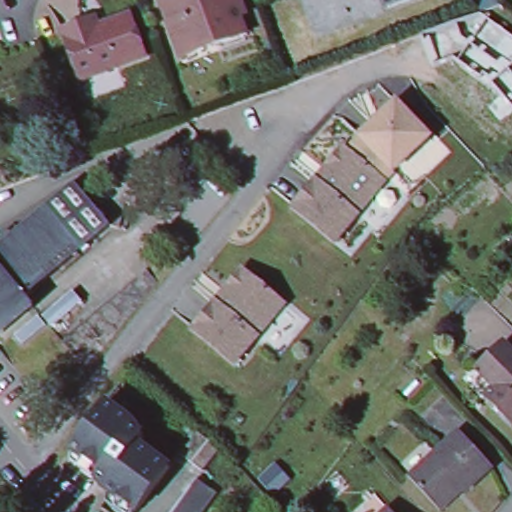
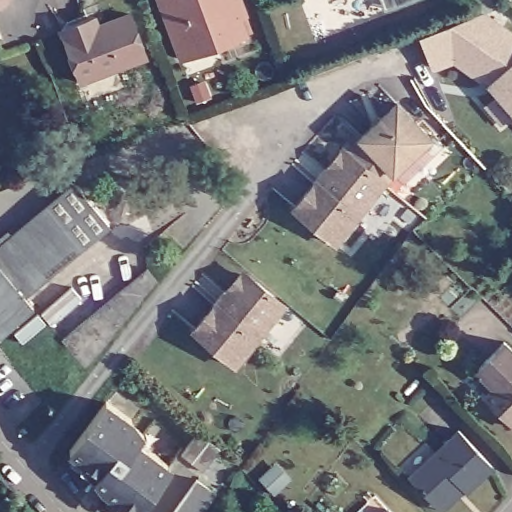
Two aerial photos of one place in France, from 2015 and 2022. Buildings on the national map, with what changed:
unchanged [(158,0),(238,0),(243,14),(238,16),(244,33),(224,41),(179,57),(176,50),(158,0)]
unchanged [(407,0),(389,7),(384,9),(381,0),(407,0)]
unchanged [(479,11),(474,0),(496,0),(498,4),(479,11)]
new [(419,35),(451,25),(487,12),(512,30),(512,116),(500,125),(484,106),(496,96),(454,61),(432,70),(419,35)]
unchanged [(92,16),(94,24),(126,13),(142,55),(77,79),(58,29),(79,21),(92,16)]
unchanged [(349,150),(359,138),(396,100),(434,139),(392,176),(384,180),(349,150)]
unchanged [(338,150),(349,150),(384,180),(334,242),(292,208),(314,180),(331,159),(338,150)]
unchanged [(68,181),(102,222),(74,246),(39,205),(68,181)]
unchanged [(16,295),(0,275),(0,238),(39,205),(74,246),(16,295)]
unchanged [(153,281),(82,369),(57,340),(141,268),(153,281)]
unchanged [(238,274),(248,273),(285,304),(235,365),(191,331),(214,303),(232,281),(238,274)]
unchanged [(21,301),(0,318),(0,275),(16,295),(21,301)]
unchanged [(511,428),(482,397),(491,389),(481,378),(476,372),(504,344),(511,351),(512,353),(512,427),(511,428)]
unchanged [(101,403),(128,423),(126,426),(141,437),(136,445),(166,468),(135,512),(130,512),(100,491),(101,488),(92,481),(97,474),(66,451),(101,403)]
unchanged [(437,506),(409,475),(459,432),(493,469),(467,492),(465,490),(441,510),(437,506)]
unchanged [(213,494),(200,512),(170,512),(193,479),(213,494)]
unchanged [(384,509),(387,512),(381,512),(384,509)]

